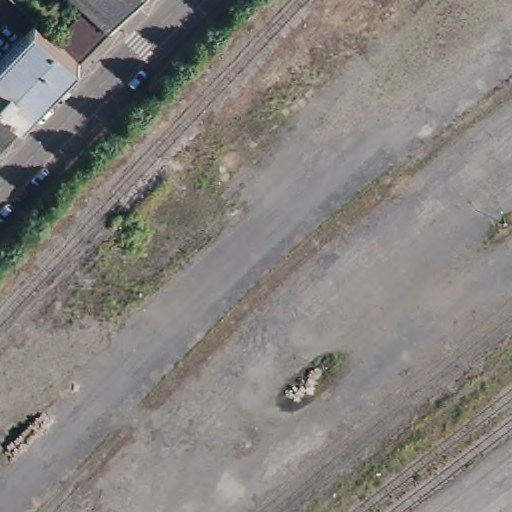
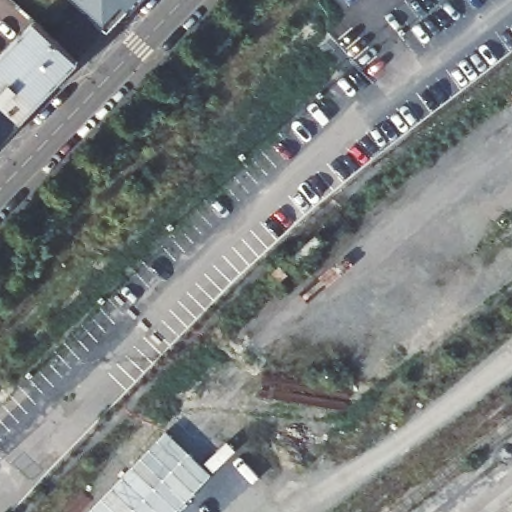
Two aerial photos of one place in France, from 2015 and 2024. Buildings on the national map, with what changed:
unchanged [(85,12),(72,0),(141,0),(108,34),(85,12)]
unchanged [(85,12),(108,34),(107,35),(77,65),(55,44),(85,12)]
unchanged [(0,103),(0,61),(34,25),(55,44),(77,65),(21,123),(0,103)]
unchanged [(0,103),(21,123),(0,145),(0,103)]
new [(211,475),(176,512),(89,512),(166,431),(211,475)]

